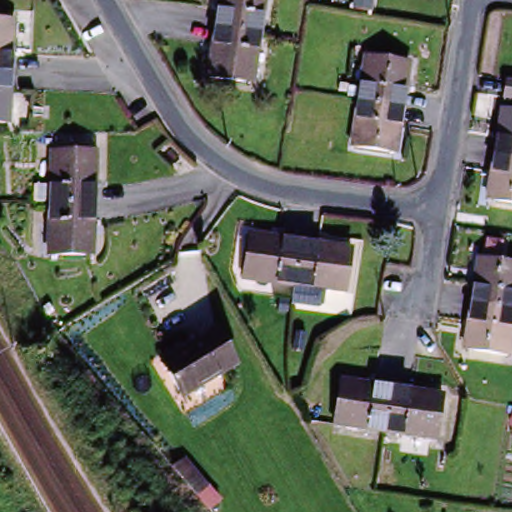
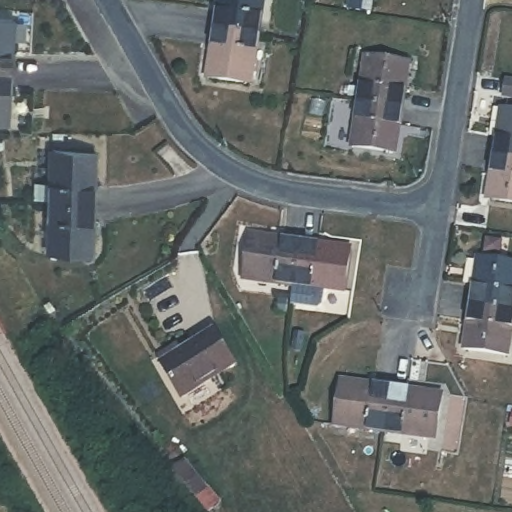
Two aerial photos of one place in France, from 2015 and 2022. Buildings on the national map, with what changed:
unchanged [(255,43),(212,35),(217,13),(225,14),(227,6),(218,4),(219,0),(264,0),(255,43)]
unchanged [(16,39),(7,39),(7,48),(15,48),(14,74),(0,73),(0,20),(17,21),(16,39)]
unchanged [(245,92),(202,83),(207,65),(215,67),(217,57),(208,55),(212,35),(255,43),(245,92)]
unchanged [(405,64),(402,79),(399,78),(397,93),(401,93),(398,112),(353,106),(355,87),(361,88),(364,59),(405,64)]
unchanged [(5,94),(4,104),(12,105),(12,129),(0,128),(0,73),(14,74),(13,94),(5,94)]
unchanged [(512,82),(512,100),(503,99),(506,82),(512,82)]
unchanged [(397,128),(393,127),(391,142),(395,143),(393,158),(353,153),(356,126),(351,125),(353,106),(398,112),(397,128)]
unchanged [(512,112),(512,159),(495,157),(497,139),(501,140),(503,127),(499,126),(502,110),(512,112)]
unchanged [(97,157),(95,177),(88,177),(87,187),(95,188),(93,209),(48,206),(53,153),(97,157)]
unchanged [(512,159),(512,205),(488,202),(490,188),(493,189),(496,175),(492,175),(495,157),(512,159)]
unchanged [(92,232),(83,232),(83,242),(90,243),(88,263),(44,260),(48,206),(93,209),(92,232)]
unchanged [(265,242),(265,249),(275,251),(276,243),(297,247),(290,290),(241,283),(247,239),(265,242)]
unchanged [(318,250),(317,257),(328,259),(329,251),(350,254),(342,298),(290,290),(297,247),(318,250)]
unchanged [(512,266),(512,311),(473,306),(476,290),(480,290),(482,277),(477,276),(480,262),(512,266)]
unchanged [(512,311),(512,328),(510,328),(506,357),(467,351),(468,338),(472,338),(475,323),(470,322),(473,306),(512,311)]
unchanged [(231,367),(179,399),(157,364),(210,333),(231,367)]
unchanged [(359,383),(358,391),(368,393),(370,385),(389,388),(382,434),(334,427),(340,380),(359,383)]
unchanged [(409,391),(408,398),(418,400),(419,392),(440,395),(434,442),(382,434),(389,388),(409,391)]
unchanged [(174,459),(197,485),(187,494),(180,485),(164,465),(174,459)]

